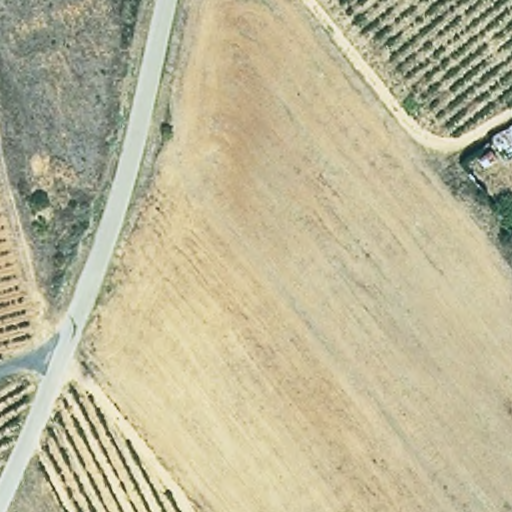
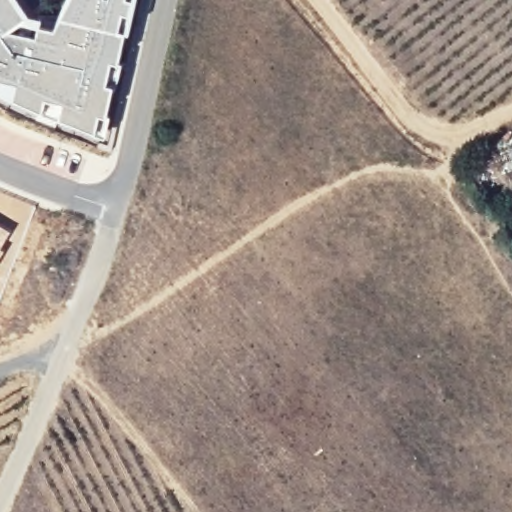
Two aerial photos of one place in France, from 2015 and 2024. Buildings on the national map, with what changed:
new [(121,31),(115,62),(107,60),(102,82),(110,84),(103,115),(97,113),(92,131),(12,100),(0,93),(0,0),(14,0),(23,15),(39,16),(38,24),(52,27),(66,0),(131,0),(124,31),(121,31)]
unchanged [(512,127),(512,153),(505,156),(492,140),(512,127)]
new [(10,231),(0,247),(0,226),(10,231)]
new [(3,251),(0,256),(0,249),(3,251)]

